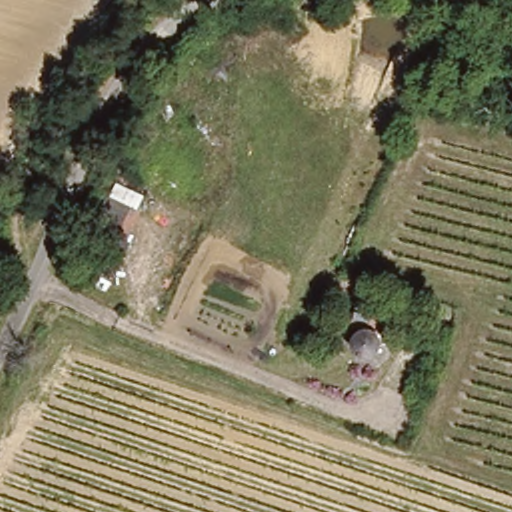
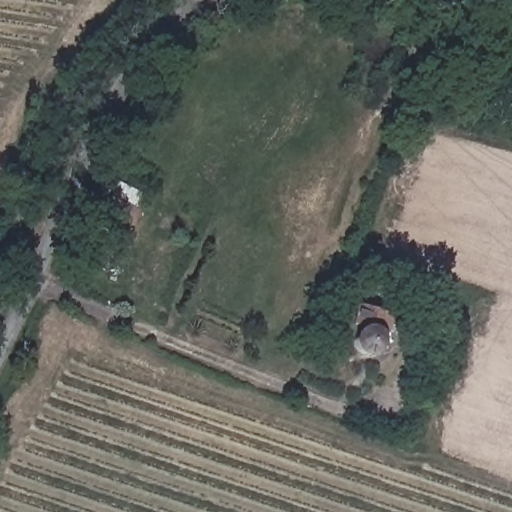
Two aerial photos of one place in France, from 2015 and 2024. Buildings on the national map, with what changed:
unchanged [(353,327),(363,323),(372,322),(379,330),(381,341),(375,353),(365,357),(355,357),(350,347),(349,338),(353,327)]

